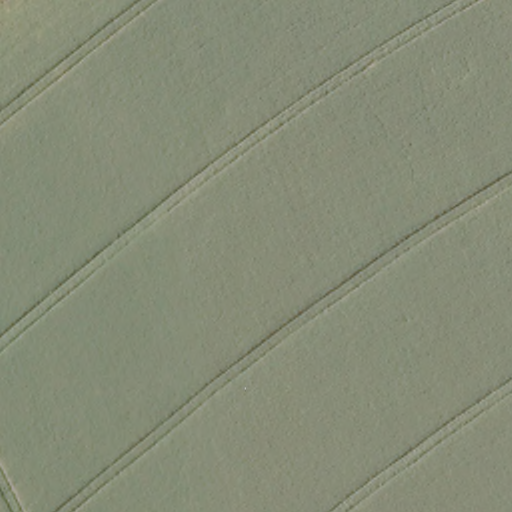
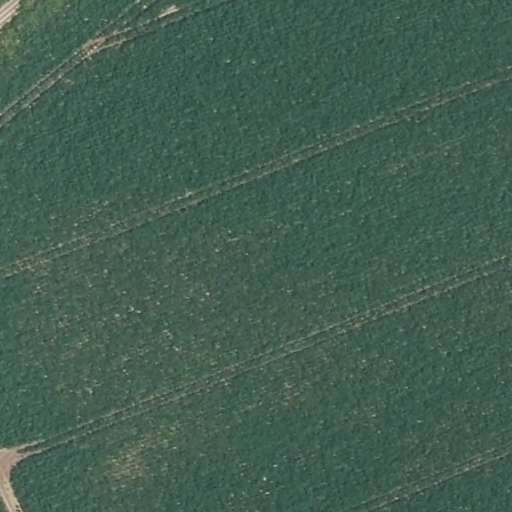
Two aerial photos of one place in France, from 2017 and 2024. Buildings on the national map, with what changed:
[]

